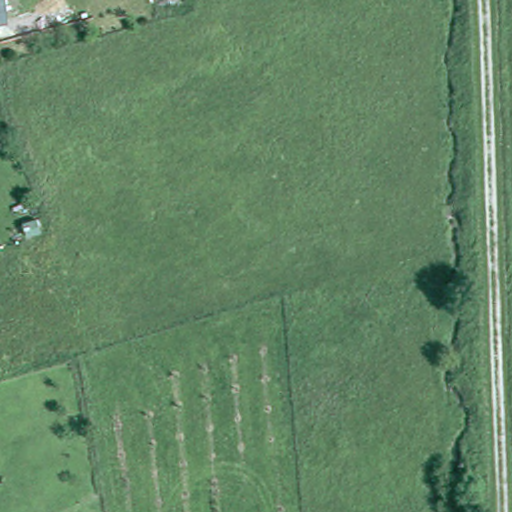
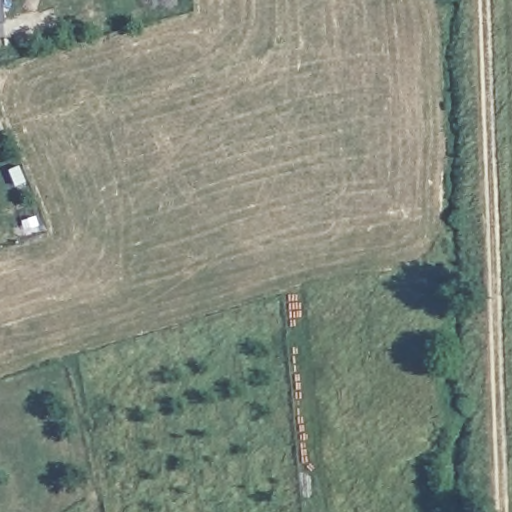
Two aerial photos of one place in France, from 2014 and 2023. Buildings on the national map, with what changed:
unchanged [(0,16),(0,0),(1,0),(3,16),(0,16)]

